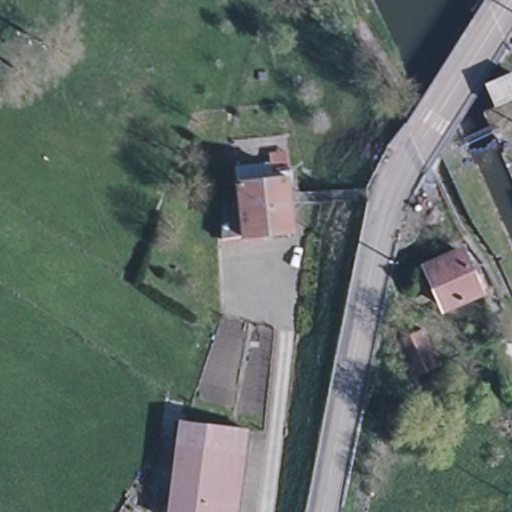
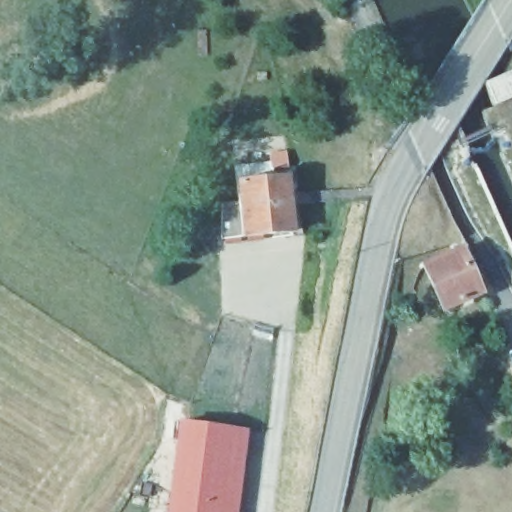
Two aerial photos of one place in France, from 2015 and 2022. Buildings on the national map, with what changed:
unchanged [(494,106),(485,85),(496,80),(511,73),(512,75),(512,98),(505,101),(494,106)]
unchanged [(296,231),(225,240),(224,204),(241,203),(238,182),(236,166),(272,161),(273,168),(282,167),(283,176),(286,176),(296,231)]
unchanged [(462,250),(467,262),(473,260),(479,275),(474,277),(479,291),(444,306),(426,266),(462,250)]
unchanged [(398,340),(422,330),(438,364),(412,375),(397,342),(398,340)]
unchanged [(191,424),(241,430),(234,479),(184,473),(191,424)]
unchanged [(230,512),(179,512),(184,473),(234,479),(230,512)]

